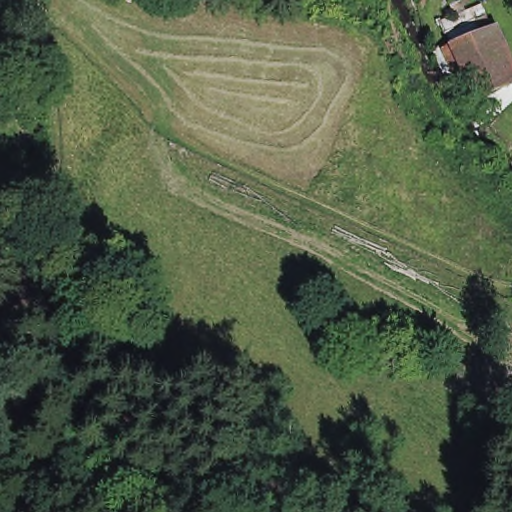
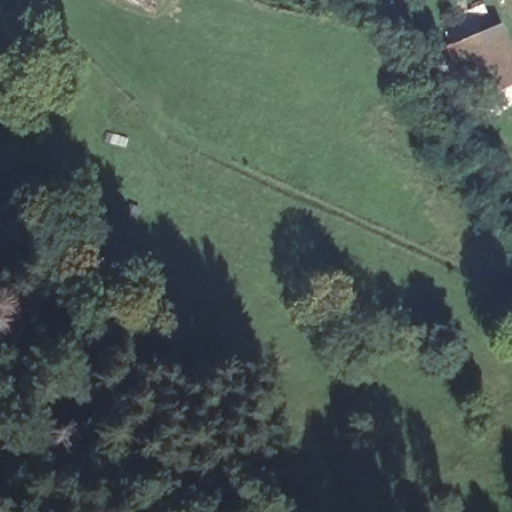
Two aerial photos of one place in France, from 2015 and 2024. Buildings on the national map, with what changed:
unchanged [(512,88),(512,95),(477,110),(458,64),(454,56),(484,43),(491,40),(512,88)]

